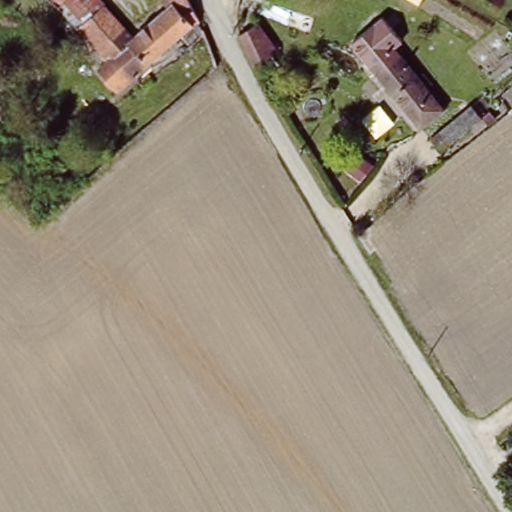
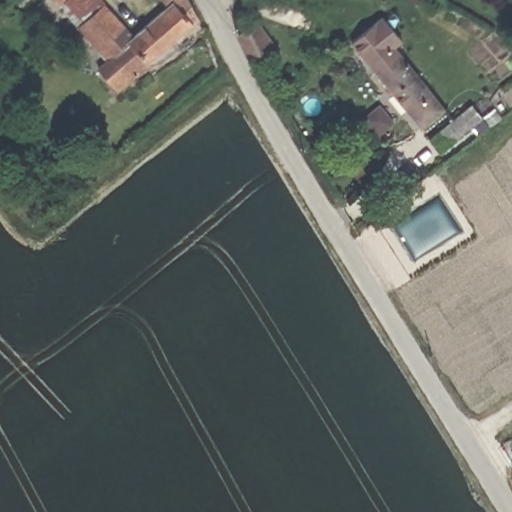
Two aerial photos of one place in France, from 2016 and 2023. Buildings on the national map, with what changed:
unchanged [(99,64),(105,59),(85,37),(67,18),(50,35),(28,18),(42,0),(100,0),(130,35),(161,7),(158,0),(184,0),(196,25),(197,26),(190,32),(115,98),(96,78),(104,71),(99,64)]
unchanged [(399,39),(392,46),(442,105),(420,123),(351,42),(382,17),(399,39)]
unchanged [(255,70),(251,62),(246,50),(245,47),(236,32),(256,19),(273,45),(265,51),(279,72),(262,82),(255,70)]

